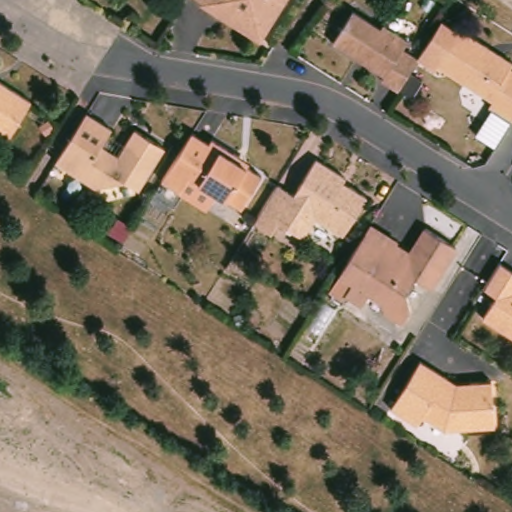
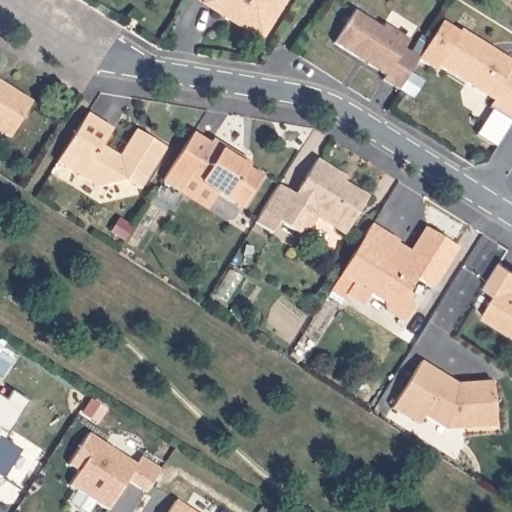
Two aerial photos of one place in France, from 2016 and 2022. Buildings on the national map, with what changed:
unchanged [(258,44),(202,9),(203,8),(190,0),(284,0),(258,44)]
unchanged [(379,81),(383,75),(331,44),(351,12),(379,29),(383,24),(407,40),(401,49),(416,59),(396,91),(379,81)]
unchanged [(486,108),(491,99),(436,65),(458,30),(509,62),(506,68),(512,72),(512,119),(509,123),(486,108)]
unchanged [(4,140),(0,137),(0,87),(26,104),(4,140)]
unchanged [(109,133),(99,148),(115,159),(133,133),(163,151),(136,193),(121,184),(93,190),(53,164),(83,117),(109,133)]
unchanged [(236,207),(185,179),(175,192),(159,181),(189,135),(206,144),(209,139),(248,164),(245,167),(258,176),(236,207)]
unchanged [(291,196),(314,161),(343,179),(340,184),(364,199),(340,237),(314,219),(301,239),(274,222),(268,234),(250,223),(274,185),(291,196)]
unchanged [(363,233),(368,225),(394,241),(393,245),(407,253),(422,229),(453,248),(427,288),(413,279),(404,291),(405,313),(398,324),(381,314),(378,303),(365,295),(358,305),(341,294),(348,283),(337,275),(363,233)]
unchanged [(498,263),(512,272),(512,338),(480,318),(494,297),(481,289),(498,263)]
unchanged [(452,383),(489,381),(493,428),(442,431),(421,418),(414,426),(388,409),(418,362),(452,383)]
new [(14,384),(31,395),(6,433),(20,442),(2,471),(0,470),(0,387),(9,393),(14,384)]
new [(108,509),(67,483),(76,468),(66,462),(87,431),(136,463),(141,455),(161,467),(145,491),(127,479),(121,488),(108,509)]
new [(195,512),(169,512),(177,500),(195,512)]

